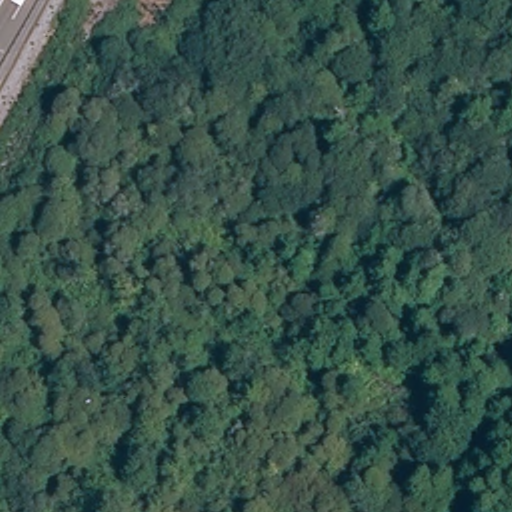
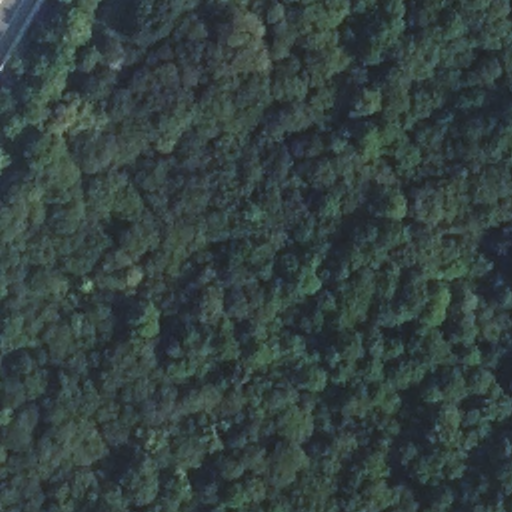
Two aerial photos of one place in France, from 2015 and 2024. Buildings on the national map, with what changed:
[]

